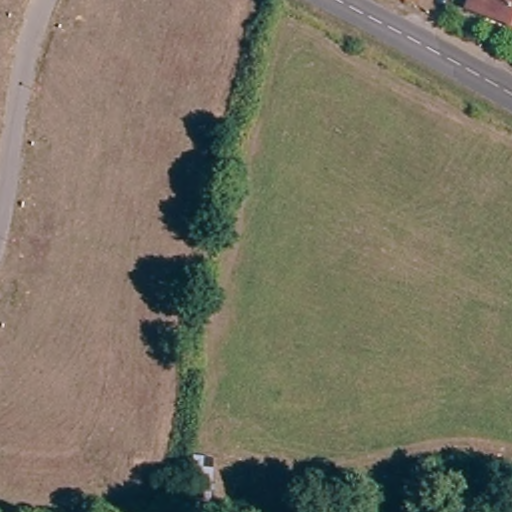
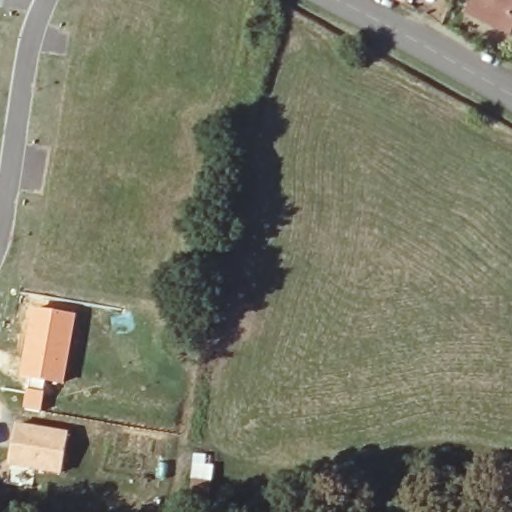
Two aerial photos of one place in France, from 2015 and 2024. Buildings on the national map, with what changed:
unchanged [(404,2),(399,0),(404,0),(404,2)]
unchanged [(468,5),(470,0),(512,0),(512,24),(468,5)]
new [(28,306),(76,314),(63,385),(16,378),(28,306)]
new [(69,432),(63,476),(9,468),(16,423),(69,432)]

